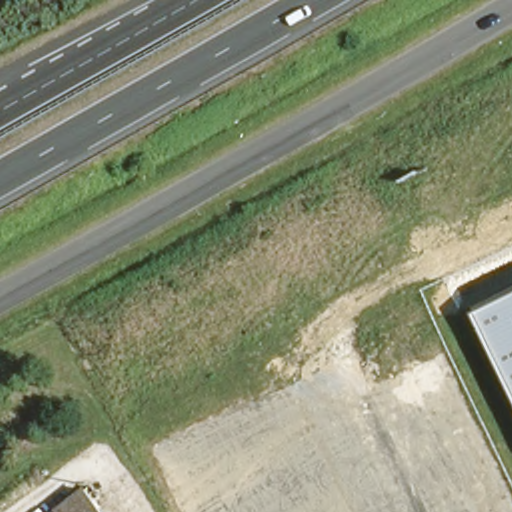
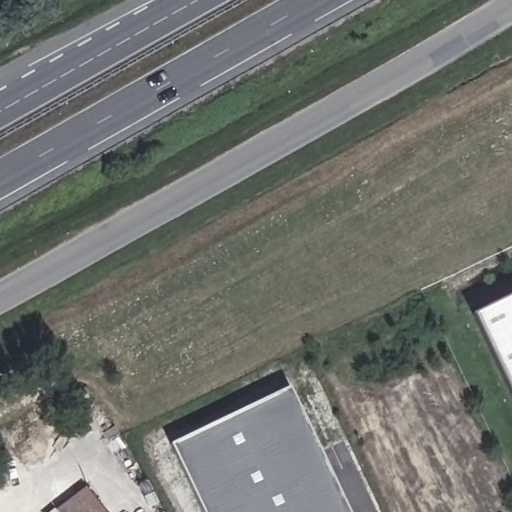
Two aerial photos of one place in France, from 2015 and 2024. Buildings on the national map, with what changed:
unchanged [(475,315),(512,297),(512,393),(475,315)]
new [(288,390),(346,512),(203,512),(171,445),(288,390)]
unchanged [(58,506),(88,485),(107,512),(62,512),(58,506)]

